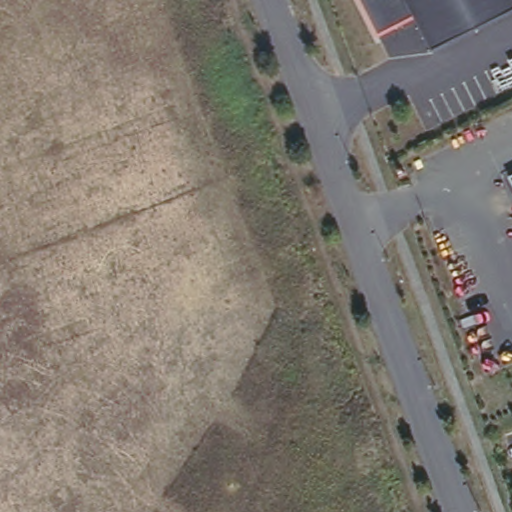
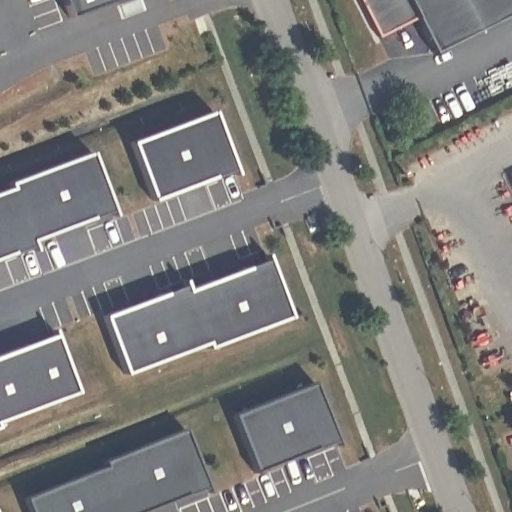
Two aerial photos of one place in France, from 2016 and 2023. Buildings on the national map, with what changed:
new [(62,0),(116,0),(69,18),(62,0)]
unchanged [(436,52),(419,18),(379,38),(359,0),(512,0),(512,12),(436,52)]
new [(234,170),(151,201),(129,143),(212,111),(234,170)]
new [(31,246),(0,258),(0,191),(9,188),(8,183),(90,152),(112,211),(30,242),(31,246)]
unchanged [(511,179),(512,179),(512,181),(511,179)]
new [(127,379),(103,315),(185,284),(187,289),(268,259),(289,317),(127,379)]
new [(0,421),(0,354),(53,334),(75,393),(0,421)]
new [(317,382),(335,436),(257,463),(239,410),(317,382)]
new [(35,496),(109,465),(106,460),(196,425),(217,478),(133,508),(135,512),(42,512),(35,496)]

